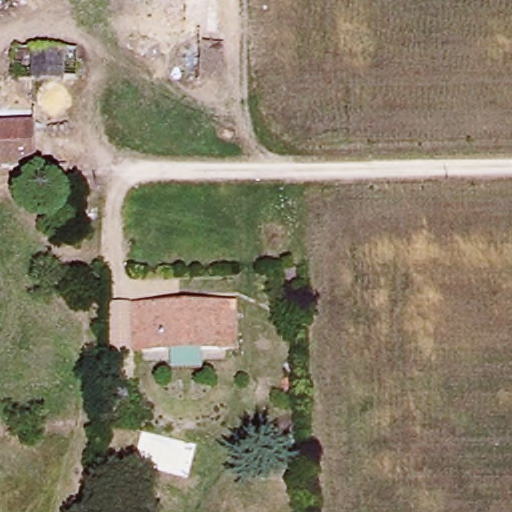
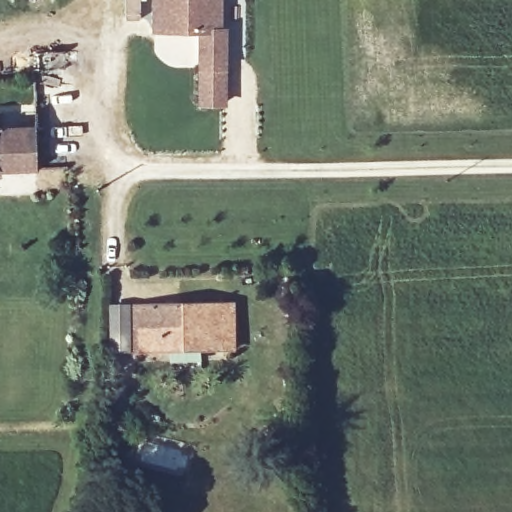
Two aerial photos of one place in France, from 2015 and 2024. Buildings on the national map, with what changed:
demolished [(205,31),(200,31),(150,32),(151,0),(206,0),(205,20),(205,31)]
new [(222,25),(227,26),(225,105),(196,104),(197,32),(151,32),(152,0),(223,0),(222,25)]
demolished [(78,49),(78,80),(64,79),(64,83),(17,84),(16,52),(78,49)]
unchanged [(10,132),(11,117),(30,117),(32,172),(0,174),(0,133),(10,132)]
unchanged [(133,306),(210,306),(229,306),(232,348),(210,347),(131,348),(133,306)]

